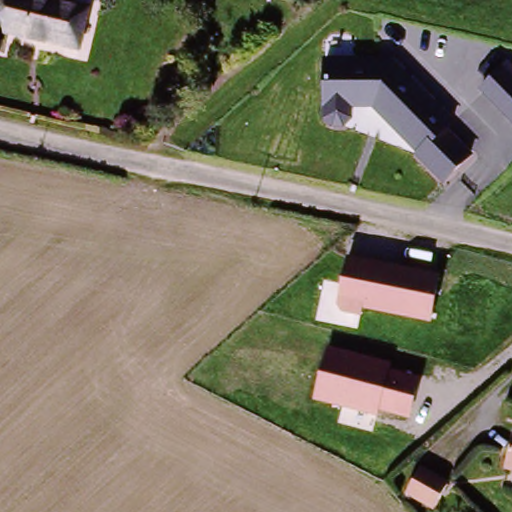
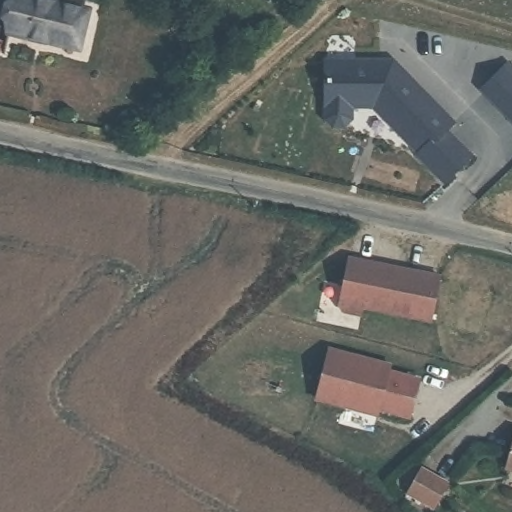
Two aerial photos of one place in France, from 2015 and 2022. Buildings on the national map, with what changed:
unchanged [(77,57),(7,39),(17,0),(25,0),(74,12),(87,16),(77,57)]
unchanged [(399,65),(479,144),(452,172),(382,101),(355,101),(352,112),(331,112),(331,60),(399,65)]
unchanged [(512,63),(512,113),(485,90),(512,63)]
unchanged [(440,276),(429,321),(339,303),(348,257),(440,276)]
unchanged [(393,361),(394,367),(422,373),(413,412),(381,406),(381,411),(318,393),(329,348),(393,361)]
unchanged [(512,449),(512,464),(508,462),(512,449)]
unchanged [(452,483),(440,505),(414,487),(427,466),(452,483)]

